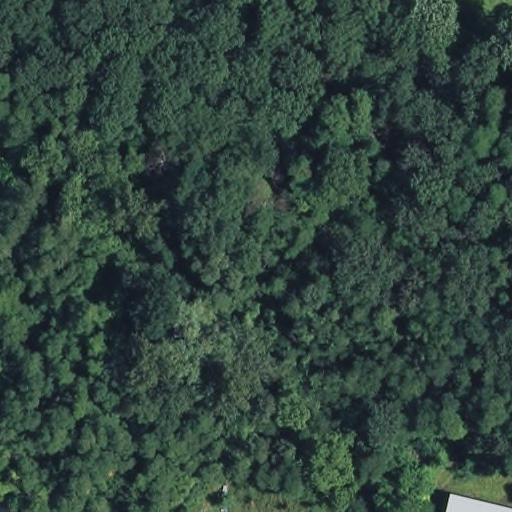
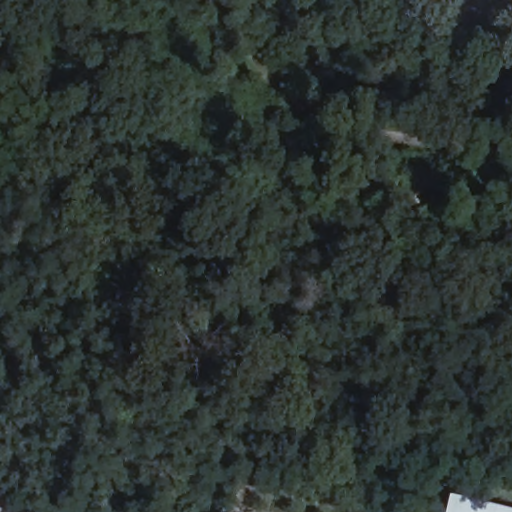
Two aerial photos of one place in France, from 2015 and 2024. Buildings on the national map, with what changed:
unchanged [(512,512),(443,512),(447,495),(512,512)]

